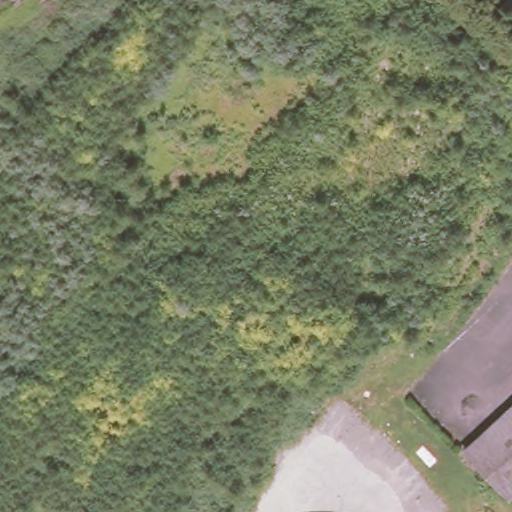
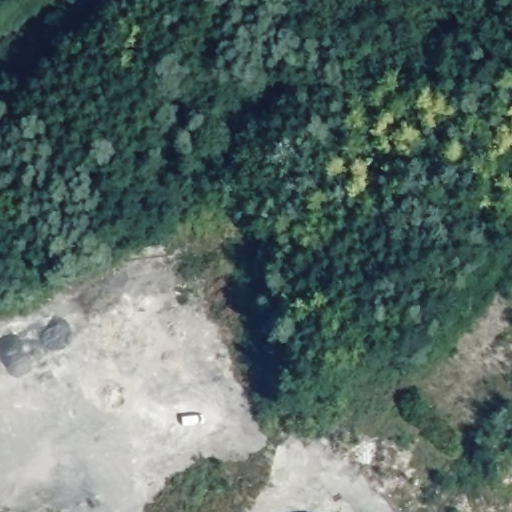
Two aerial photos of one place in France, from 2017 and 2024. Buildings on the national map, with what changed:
new [(0,7),(0,0),(9,0),(0,7)]
unchanged [(359,0),(400,0),(390,9),(392,11),(379,23),(359,0)]
demolished [(507,411),(512,406),(512,417),(507,411)]
demolished [(507,411),(512,417),(512,489),(507,494),(465,449),(507,411)]

